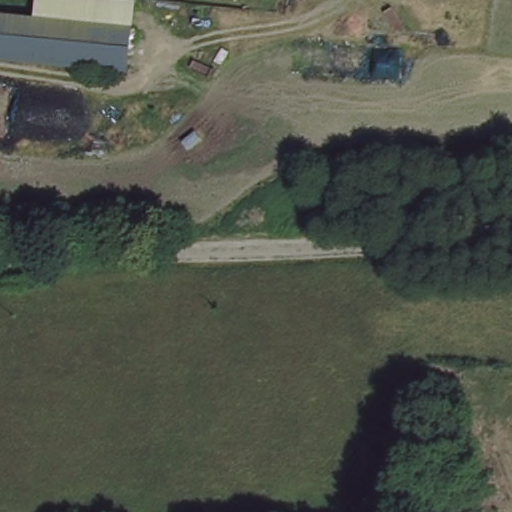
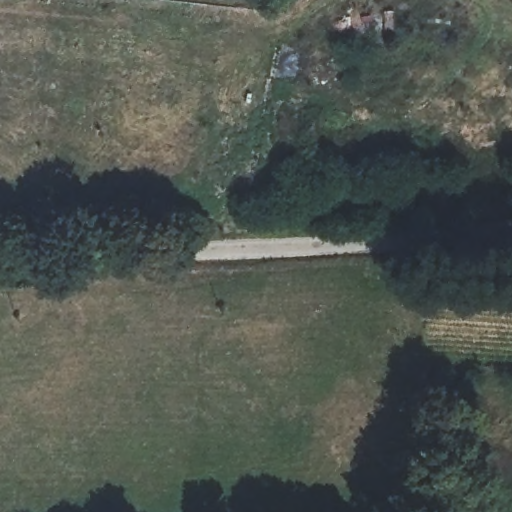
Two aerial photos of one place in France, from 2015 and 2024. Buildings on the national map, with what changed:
demolished [(0,10),(39,11),(40,0),(145,0),(132,65),(0,53),(0,10)]
unchanged [(237,212),(237,221),(224,222),(225,213),(237,212)]

